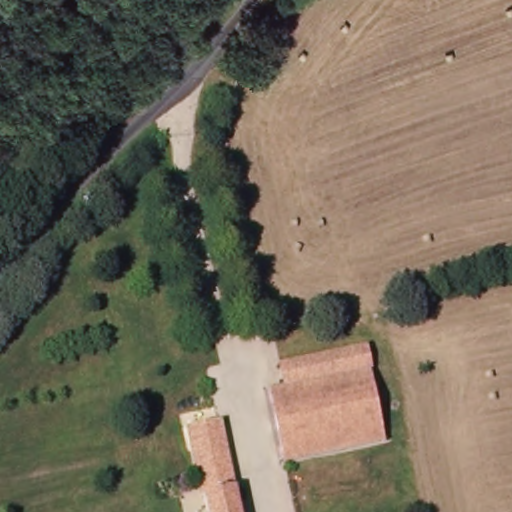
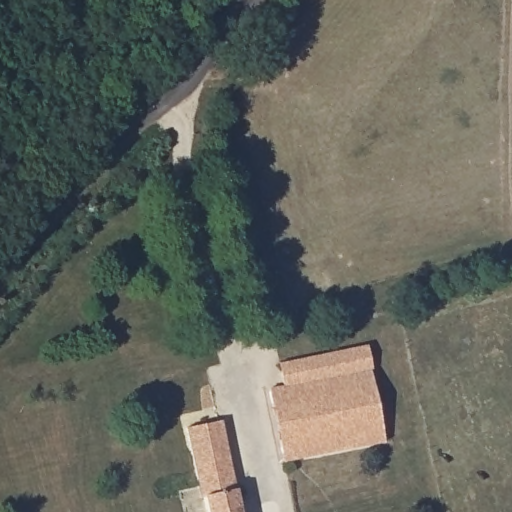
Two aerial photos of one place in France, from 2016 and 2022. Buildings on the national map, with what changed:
unchanged [(376,370),(390,439),(288,459),(272,391),(287,387),(282,364),(371,344),(376,370)]
unchanged [(224,420),(242,512),(209,512),(202,478),(199,479),(189,427),(224,420)]

